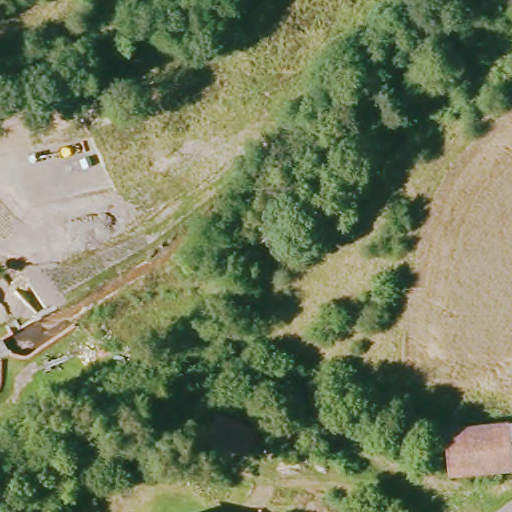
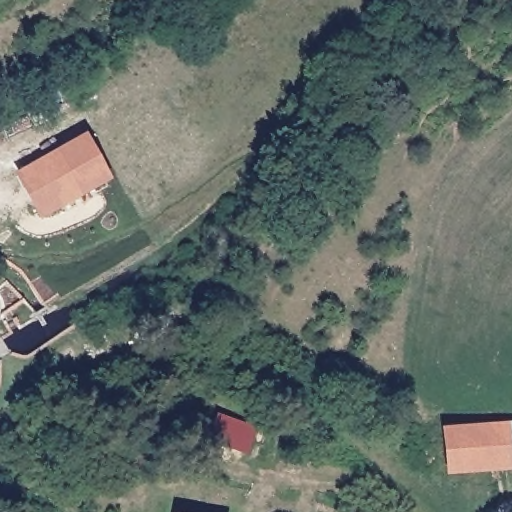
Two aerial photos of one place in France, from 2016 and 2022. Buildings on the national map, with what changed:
new [(55,151),(85,134),(108,178),(81,195),(40,220),(14,174),(55,151)]
unchanged [(451,477),(449,435),(512,429),(512,471),(451,477)]

